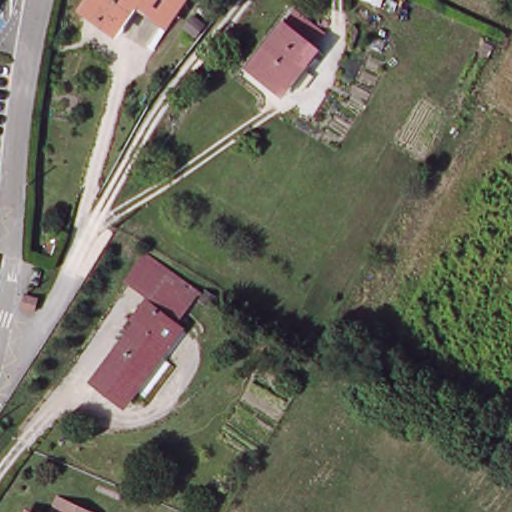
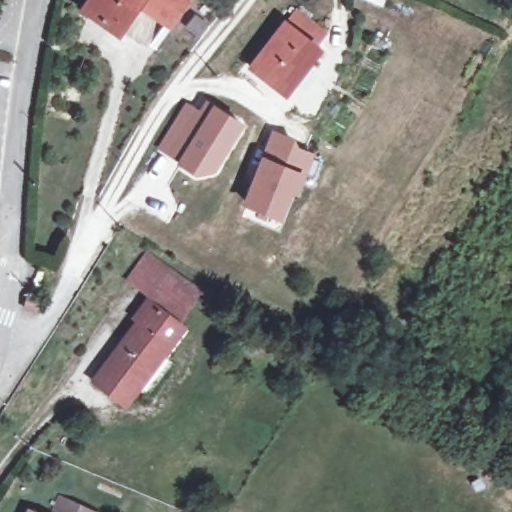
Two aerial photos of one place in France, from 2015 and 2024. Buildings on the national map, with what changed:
unchanged [(142,4),(122,31),(90,9),(95,0),(193,0),(174,26),(142,4)]
unchanged [(330,34),(318,48),(322,50),(287,94),(253,67),(298,10),(330,34)]
new [(200,109),(207,99),(245,125),(217,171),(194,176),(176,163),(178,159),(157,147),(186,102),(200,109)]
new [(295,140),(298,148),(315,154),(306,177),(297,195),(292,193),(282,221),(242,206),(262,156),(273,129),(295,140)]
unchanged [(422,241),(423,241),(416,254),(414,253),(405,248),(412,235),(422,241)]
unchanged [(198,292),(185,310),(155,290),(150,297),(127,281),(145,256),(198,292)]
unchanged [(203,291),(212,297),(207,304),(198,299),(203,291)]
unchanged [(134,320),(146,302),(180,326),(123,403),(94,381),(137,322),(134,320)]
unchanged [(57,509),(64,512),(55,512),(57,509)]

